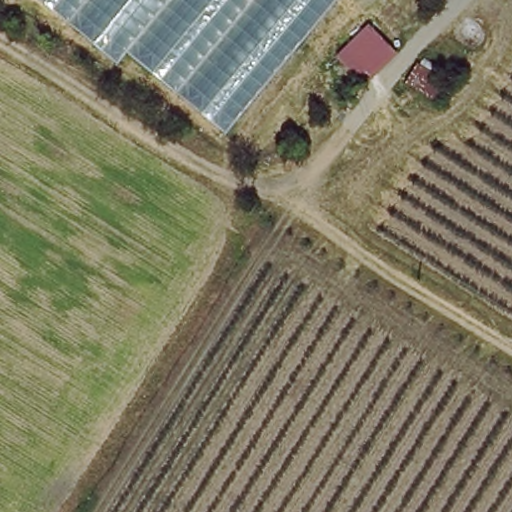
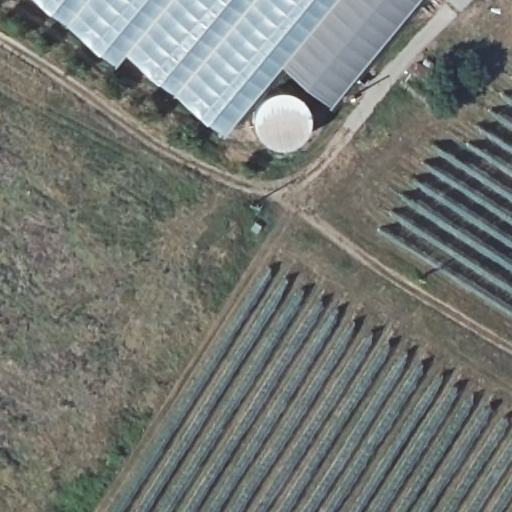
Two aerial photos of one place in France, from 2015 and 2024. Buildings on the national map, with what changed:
unchanged [(225,132),(127,51),(117,65),(36,0),(334,0),(225,132)]
new [(334,0),(418,0),(332,104),(282,63),(334,0)]
demolished [(403,53),(365,88),(334,58),(372,26),(403,53)]
unchanged [(423,62),(450,82),(437,101),(409,82),(423,62)]
new [(255,107),(260,99),(266,93),(274,89),(283,87),(292,89),(300,93),(306,99),(311,107),(312,116),(311,125),(306,133),(300,140),(292,144),(283,145),(274,144),(266,140),(260,133),(255,125),(254,116),(255,107)]

